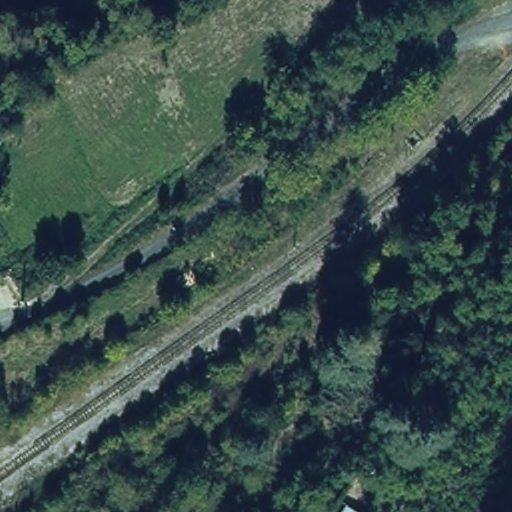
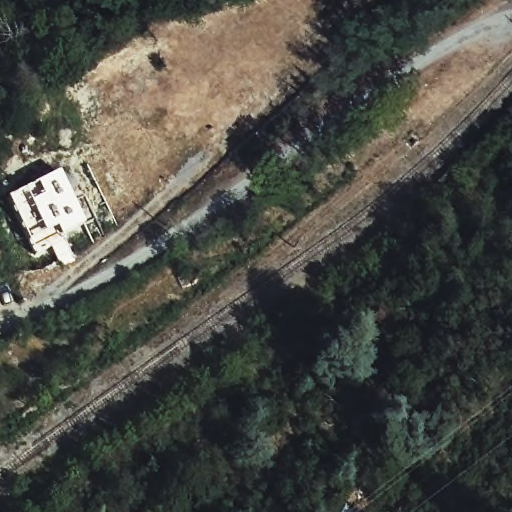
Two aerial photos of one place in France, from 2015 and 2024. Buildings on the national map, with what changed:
new [(60,172),(85,224),(60,239),(57,234),(32,247),(7,198),(60,172)]
unchanged [(340,512),(342,509),(346,512),(340,512)]

